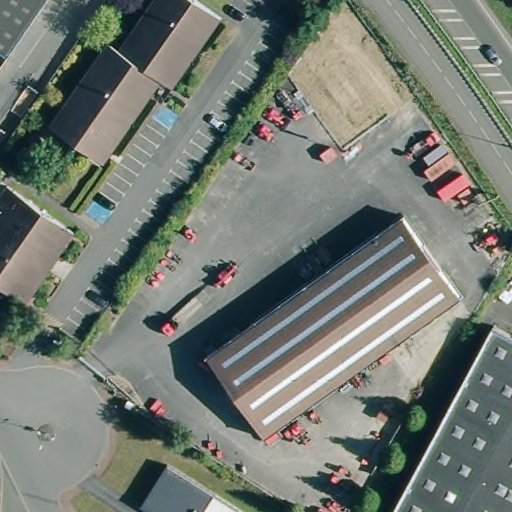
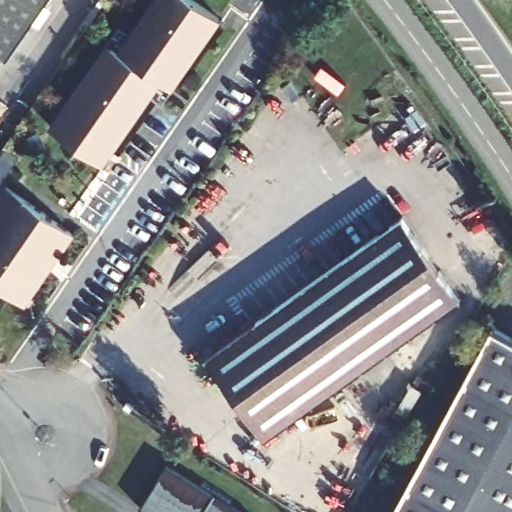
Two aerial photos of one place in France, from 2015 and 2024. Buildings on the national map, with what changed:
unchanged [(0,42),(0,0),(47,0),(12,50),(0,42)]
unchanged [(120,50),(155,0),(195,0),(222,19),(174,88),(163,80),(105,163),(52,124),(109,43),(120,50)]
unchanged [(5,201),(0,197),(0,195),(9,183),(77,230),(28,300),(0,282),(0,208),(5,201)]
unchanged [(205,355),(399,213),(462,295),(267,438),(205,355)]
unchanged [(492,326),(512,337),(512,512),(393,512),(492,326)]
unchanged [(142,506),(169,465),(215,494),(240,512),(152,512),(142,506)]

